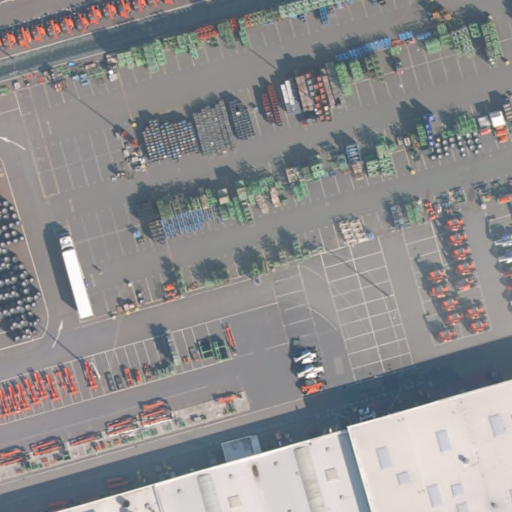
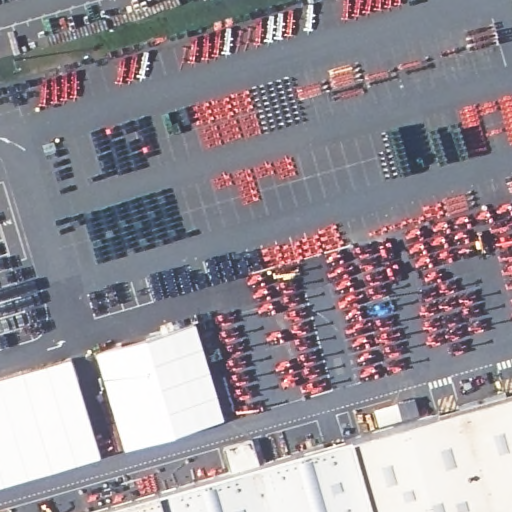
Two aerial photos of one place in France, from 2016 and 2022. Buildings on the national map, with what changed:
new [(280,302),(302,375),(226,397),(207,325),(280,302)]
new [(195,320),(222,418),(124,447),(95,351),(195,320)]
new [(0,484),(0,376),(70,357),(101,454),(0,484)]
unchanged [(158,512),(153,495),(512,398),(512,512),(158,512)]
unchanged [(158,512),(93,512),(153,495),(158,512)]

